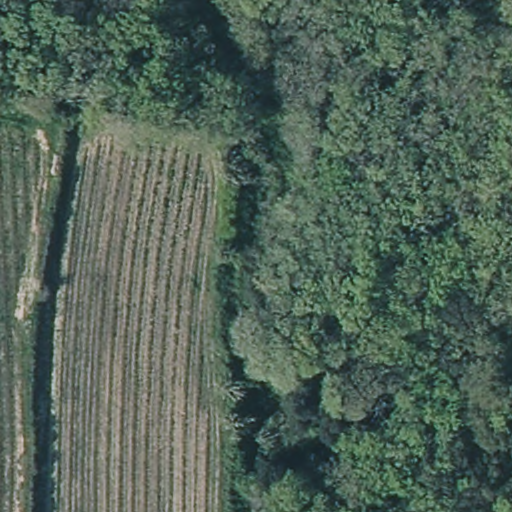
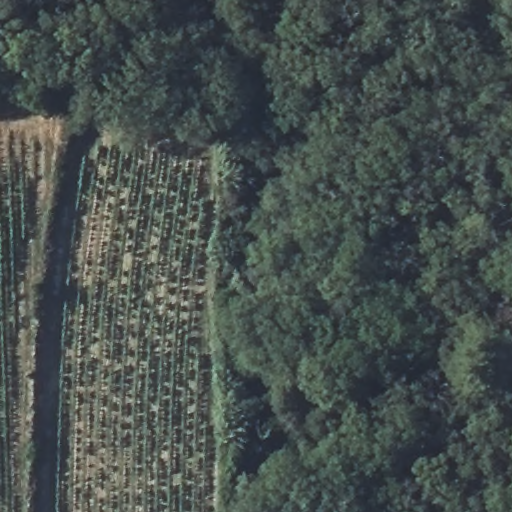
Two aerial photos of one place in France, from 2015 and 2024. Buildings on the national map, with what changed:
unchanged [(231,78),(207,79),(208,60),(230,60),(231,78)]

